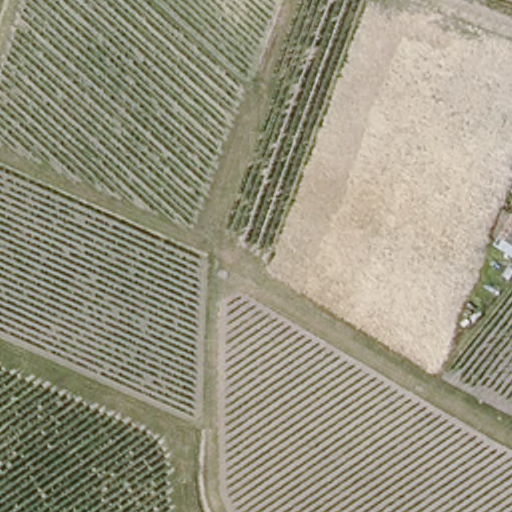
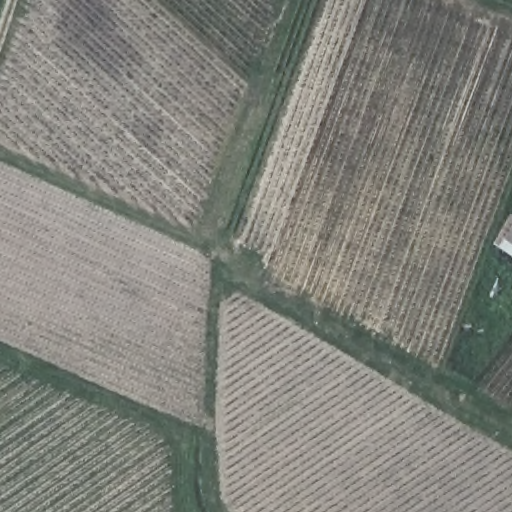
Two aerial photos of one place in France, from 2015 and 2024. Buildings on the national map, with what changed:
unchanged [(507,221),(512,224),(512,248),(496,239),(507,221)]

